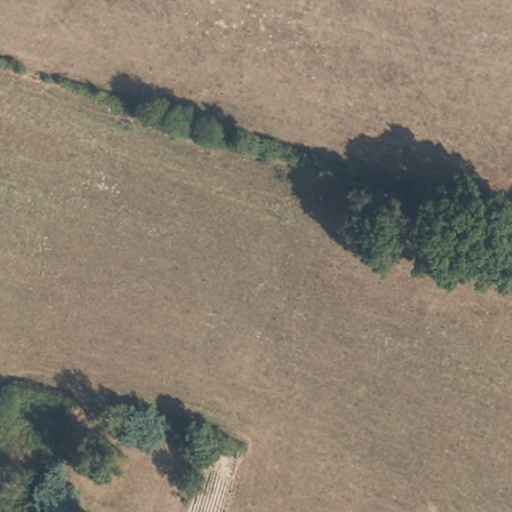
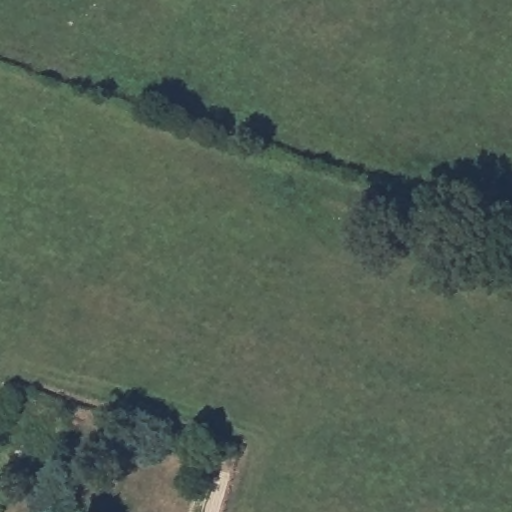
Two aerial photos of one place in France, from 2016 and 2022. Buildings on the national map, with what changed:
unchanged [(8,498),(2,512),(0,512),(0,497),(8,498)]

